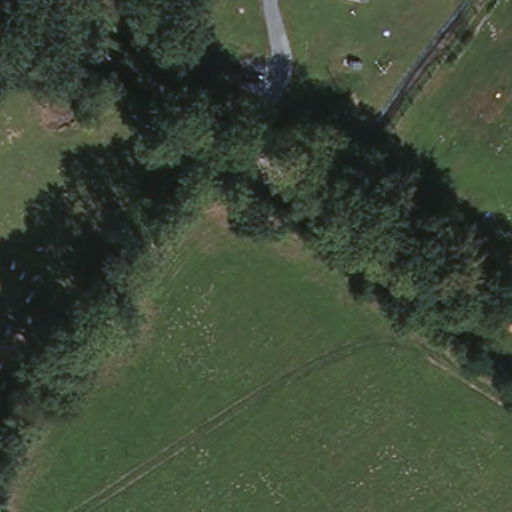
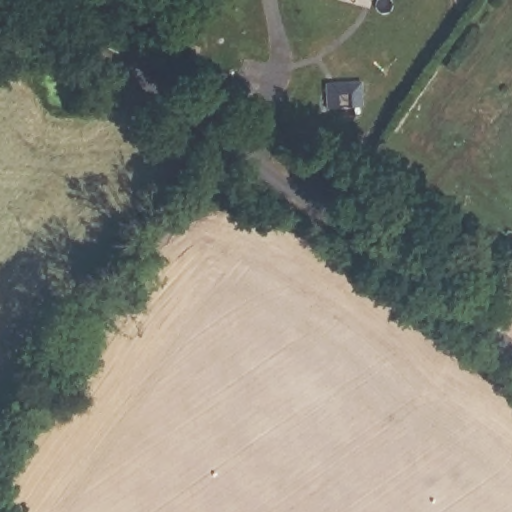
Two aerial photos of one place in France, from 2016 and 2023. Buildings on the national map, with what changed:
[]

